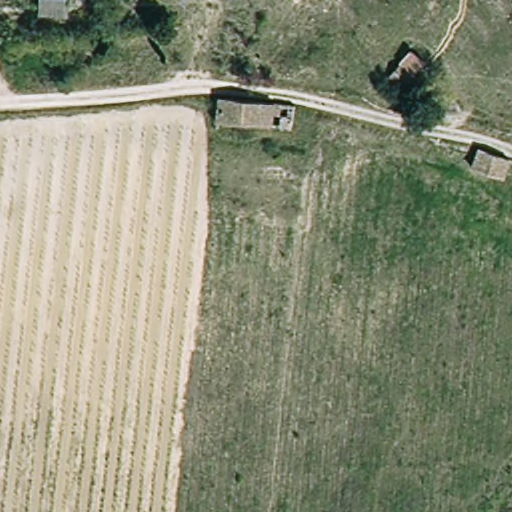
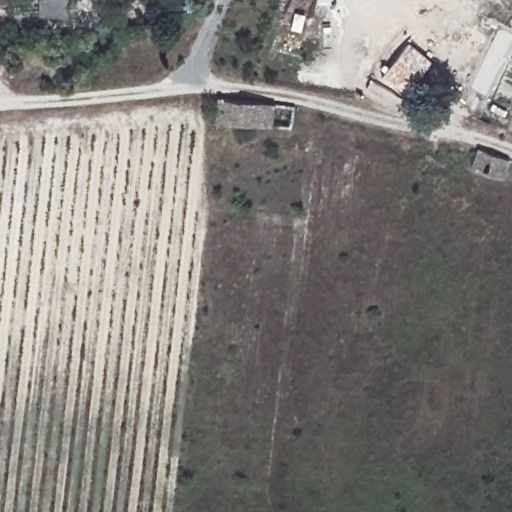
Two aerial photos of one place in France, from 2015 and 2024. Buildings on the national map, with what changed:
unchanged [(38,0),(69,0),(68,17),(38,17),(38,0)]
unchanged [(409,89),(395,78),(413,54),(427,65),(409,89)]
unchanged [(216,116),(218,96),(296,105),(292,127),(216,116)]
unchanged [(480,146),(512,157),(512,160),(505,176),(475,166),(480,146)]

